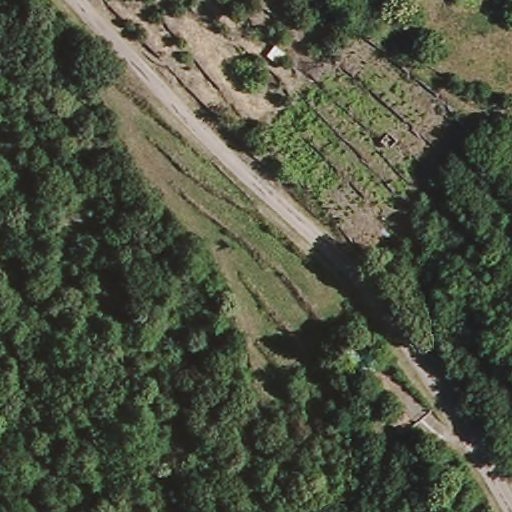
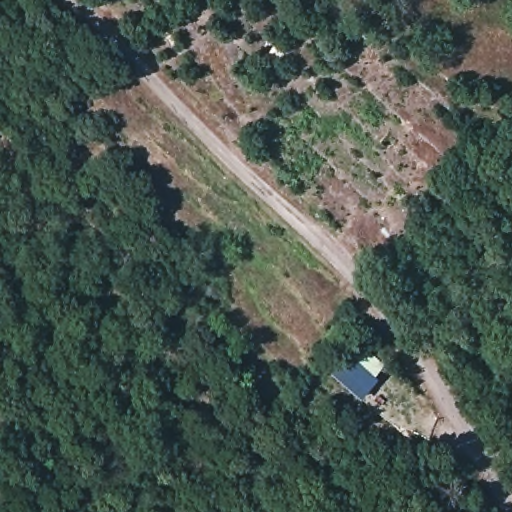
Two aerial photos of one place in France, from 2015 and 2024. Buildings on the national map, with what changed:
unchanged [(277,65),(267,55),(276,46),(287,55),(277,65)]
unchanged [(390,130),(401,141),(388,151),(378,143),(390,130)]

